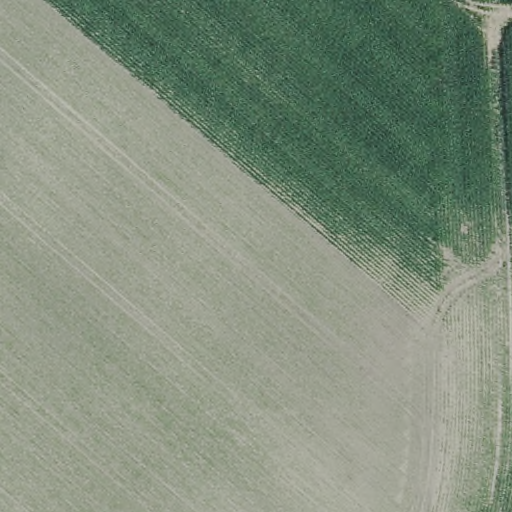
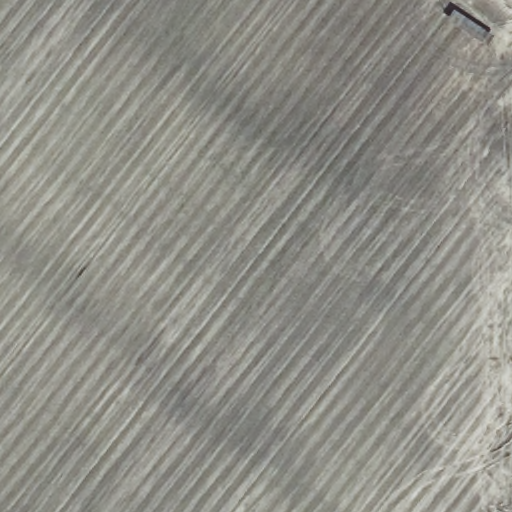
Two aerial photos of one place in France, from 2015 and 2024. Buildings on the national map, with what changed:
[]

